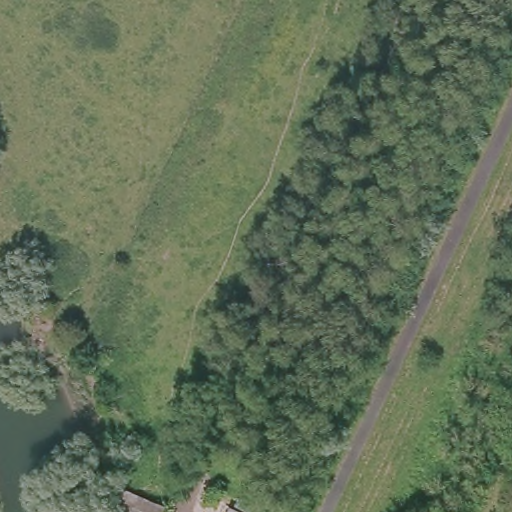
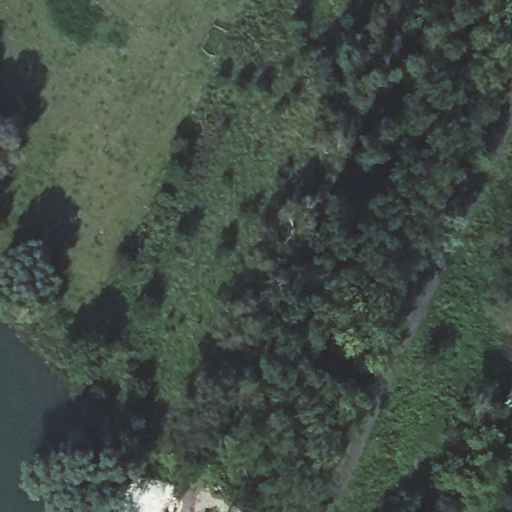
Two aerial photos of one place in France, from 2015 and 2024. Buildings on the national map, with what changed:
unchanged [(155,505),(165,508),(162,512),(121,512),(121,492),(155,505)]

